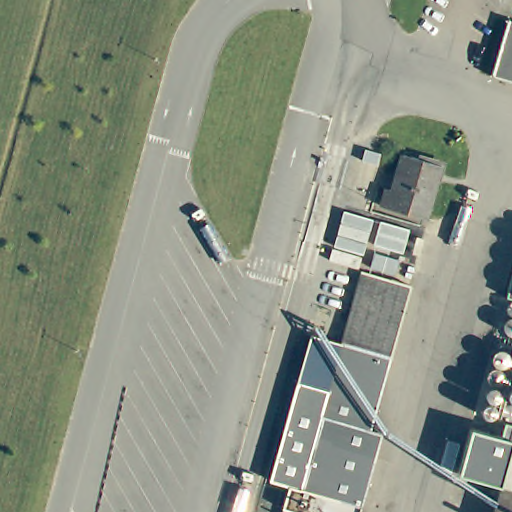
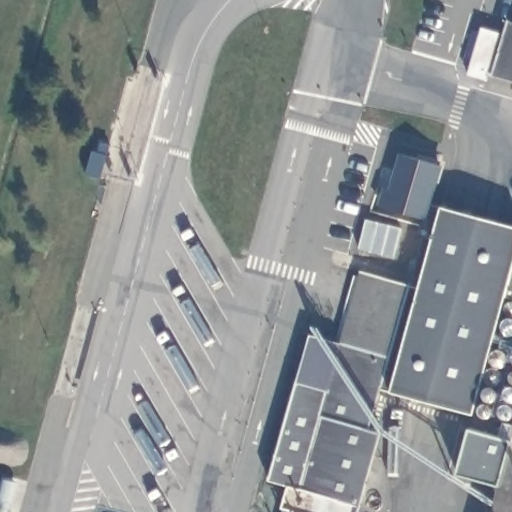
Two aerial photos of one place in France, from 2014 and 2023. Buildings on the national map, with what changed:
unchanged [(512,24),(512,82),(497,78),(512,24)]
unchanged [(419,165),(420,161),(436,166),(430,183),(437,184),(426,220),(380,210),(385,193),(391,194),(400,160),(419,165)]
new [(445,206),(512,225),(512,267),(472,414),(393,389),(445,206)]
unchanged [(286,511),(293,486),(272,481),(311,336),(345,345),(365,270),(385,276),(391,254),(420,261),(373,432),(385,433),(364,512),(292,512),(286,511)]
new [(458,474),(471,429),(510,439),(497,484),(458,474)]
unchanged [(512,429),(512,512),(490,512),(512,429)]

